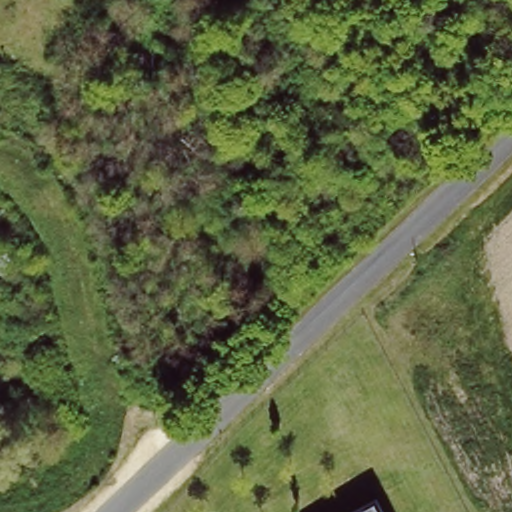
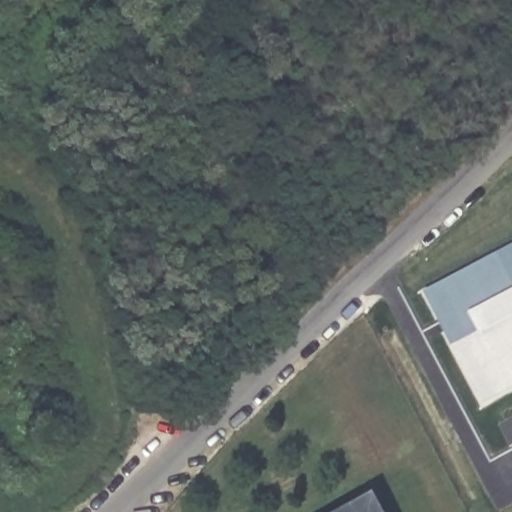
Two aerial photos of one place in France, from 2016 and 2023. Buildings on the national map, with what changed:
new [(512,253),(512,380),(484,394),(432,295),(512,253)]
unchanged [(388,512),(333,512),(375,489),(388,512)]

